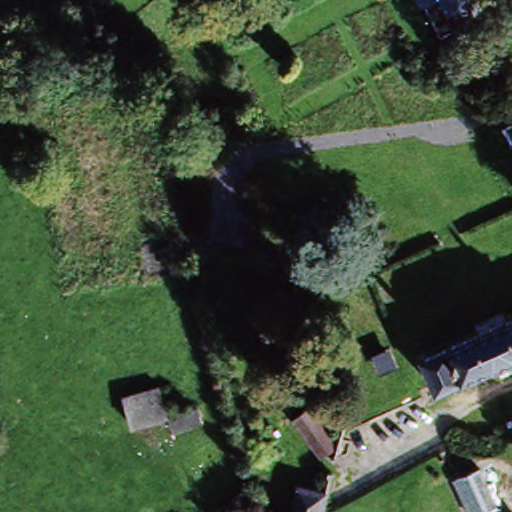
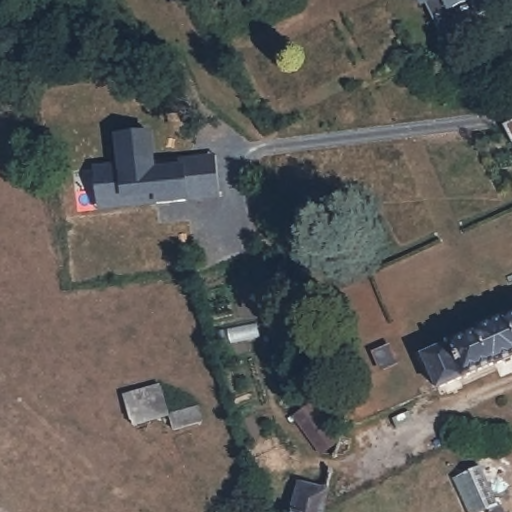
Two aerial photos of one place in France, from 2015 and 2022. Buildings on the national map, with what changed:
unchanged [(416,37),(401,7),(397,9),(393,0),(461,0),(466,12),(416,37)]
unchanged [(505,128),(512,124),(512,139),(505,128)]
new [(93,173),(102,172),(120,169),(116,141),(150,137),(154,174),(153,165),(215,159),(216,167),(220,200),(157,208),(98,214),(93,173)]
unchanged [(487,361),(486,358),(433,381),(420,351),(512,309),(512,349),(487,361)]
unchanged [(277,371),(266,365),(282,330),(293,334),(277,371)]
unchanged [(333,444),(322,452),(296,414),(308,407),(333,444)]
unchanged [(192,424),(161,432),(157,415),(188,408),(192,424)]
unchanged [(503,502),(498,505),(503,512),(493,512),(490,509),(485,512),(478,512),(457,474),(482,462),(503,502)]
unchanged [(292,484),(323,491),(318,512),(287,512),(292,484)]

